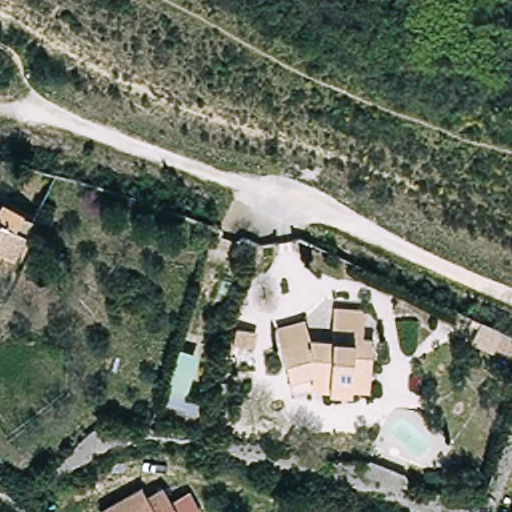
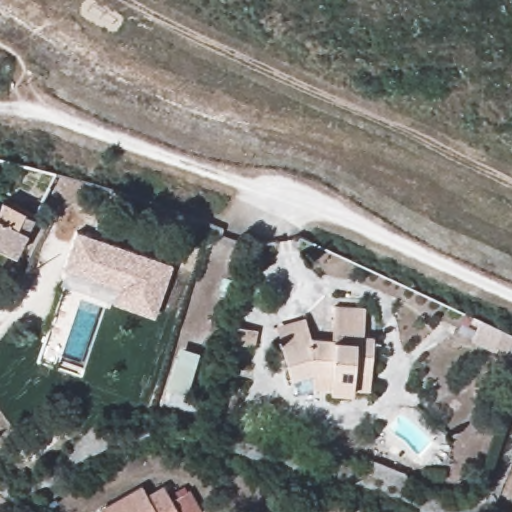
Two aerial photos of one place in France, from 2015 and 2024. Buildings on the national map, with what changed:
unchanged [(0,214),(3,209),(24,219),(23,221),(32,226),(27,238),(15,264),(10,276),(0,271),(0,214)]
new [(78,234),(174,265),(157,318),(115,304),(120,289),(66,272),(78,234)]
unchanged [(303,315),(309,335),(330,337),(332,303),(363,304),(363,332),(371,333),(367,388),(350,388),(350,390),(310,388),(311,373),(290,379),(273,323),(303,315)]
unchanged [(260,332),(257,348),(236,344),(239,328),(260,332)]
new [(199,353),(186,392),(200,397),(195,413),(165,403),(170,392),(166,391),(180,347),(199,353)]
unchanged [(147,504),(162,493),(172,508),(187,498),(196,512),(113,512),(140,494),(147,504)]
unchanged [(512,507),(512,512),(509,512),(511,507),(512,507)]

